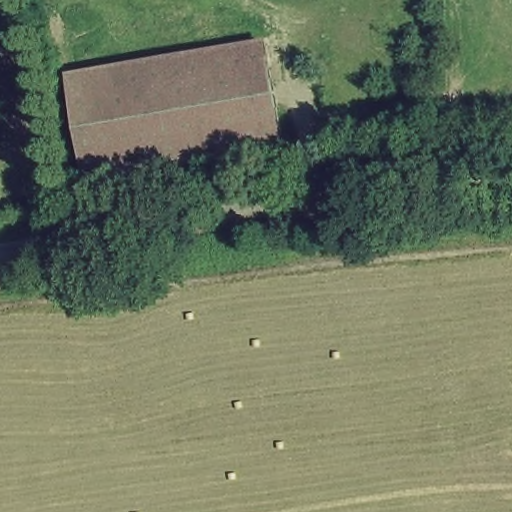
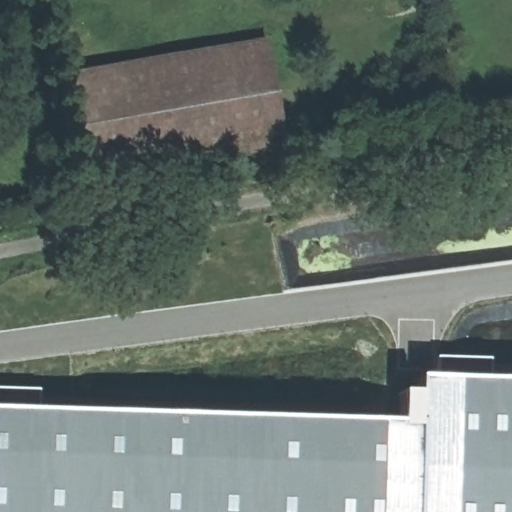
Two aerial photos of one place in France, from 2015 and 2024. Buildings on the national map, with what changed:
unchanged [(265,48),(282,147),(83,180),(66,79),(265,48)]
new [(416,378),(512,381),(512,512),(0,512),(0,411),(414,423),(416,378)]

